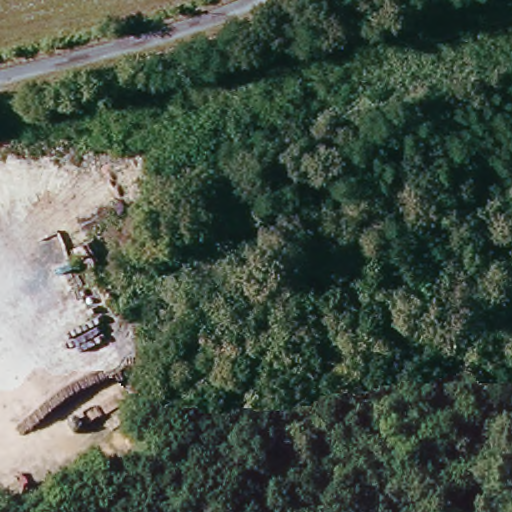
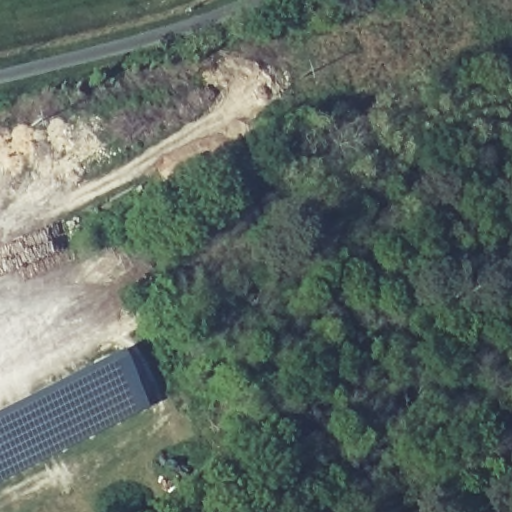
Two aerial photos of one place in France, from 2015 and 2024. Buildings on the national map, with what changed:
new [(0,481),(0,412),(118,352),(147,407),(0,481)]

